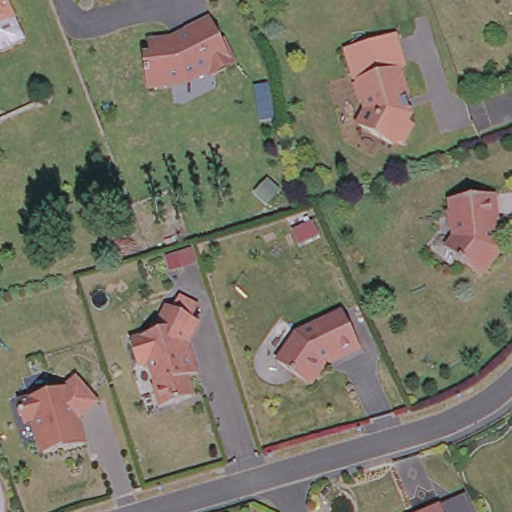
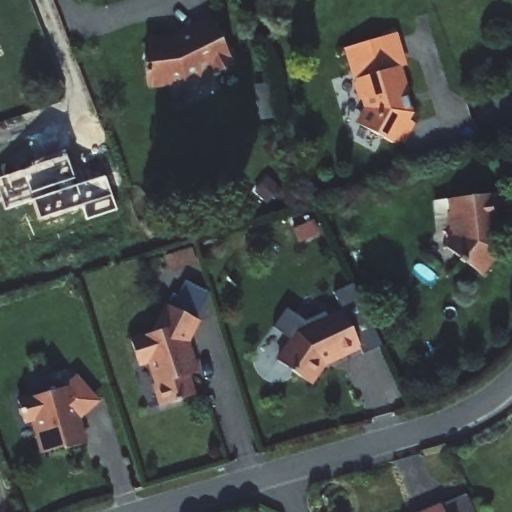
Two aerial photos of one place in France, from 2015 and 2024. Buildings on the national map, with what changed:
demolished [(0,50),(0,0),(13,0),(30,36),(0,50)]
unchanged [(232,63),(211,74),(208,68),(180,83),(172,83),(170,81),(146,85),(143,60),(149,60),(146,41),(166,39),(170,41),(185,33),(184,31),(209,18),(232,63)]
unchanged [(364,107),(363,100),(359,100),(345,48),(399,31),(408,64),(402,66),(411,91),(408,96),(415,112),(412,120),(414,123),(404,142),(400,141),(396,145),(357,123),(364,107)]
unchanged [(255,85),(270,83),(275,116),(260,119),(255,85)]
new [(0,194),(0,178),(65,156),(76,185),(105,176),(116,209),(86,220),(82,205),(39,219),(33,200),(5,209),(0,194)]
unchanged [(279,189),(263,205),(248,191),(264,174),(279,189)]
unchanged [(495,225),(490,225),(492,249),(498,253),(477,277),(462,265),(461,266),(456,262),(457,261),(443,250),(452,239),(451,232),(448,229),(447,217),(449,215),(448,202),(492,197),(495,225)]
unchanged [(353,347),(317,363),(303,384),(271,363),(290,333),(336,312),(353,347)]
unchanged [(183,353),(188,366),(193,367),(198,381),(186,384),(193,407),(158,417),(151,396),(155,394),(149,373),(141,375),(136,372),(130,350),(154,342),(157,337),(153,334),(165,314),(195,329),(183,353)]
unchanged [(95,400),(76,417),(86,444),(65,451),(63,447),(46,453),(40,448),(37,440),(40,436),(36,419),(25,422),(22,414),(20,415),(18,409),(22,408),(19,401),(67,387),(77,380),(95,400)]
unchanged [(438,504),(442,512),(420,512),(438,504)]

